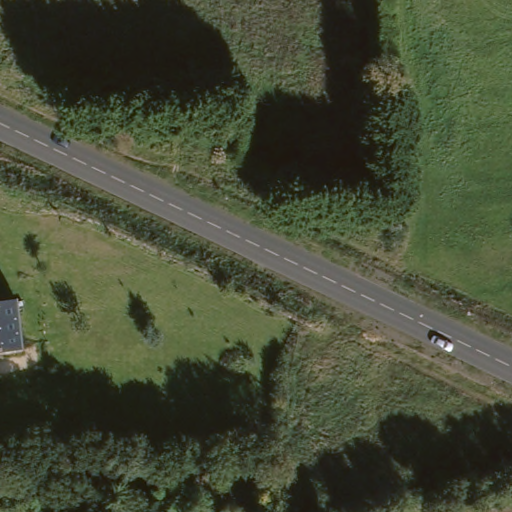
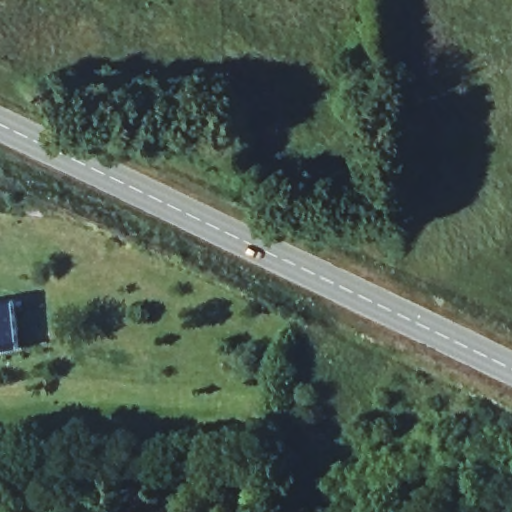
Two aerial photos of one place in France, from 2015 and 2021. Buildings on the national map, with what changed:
unchanged [(20,296),(26,343),(0,347),(0,298),(20,296)]
unchanged [(227,448),(227,432),(250,432),(250,448),(227,448)]

